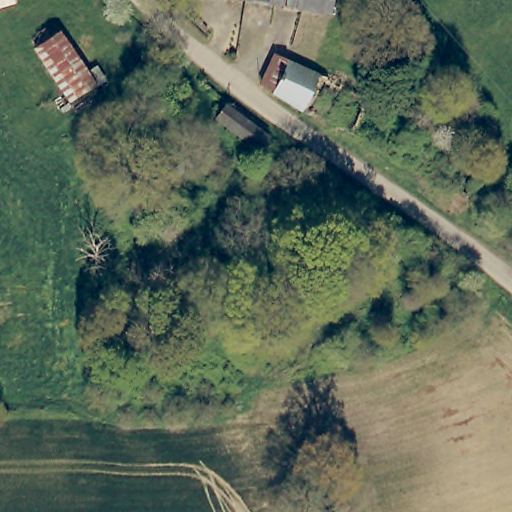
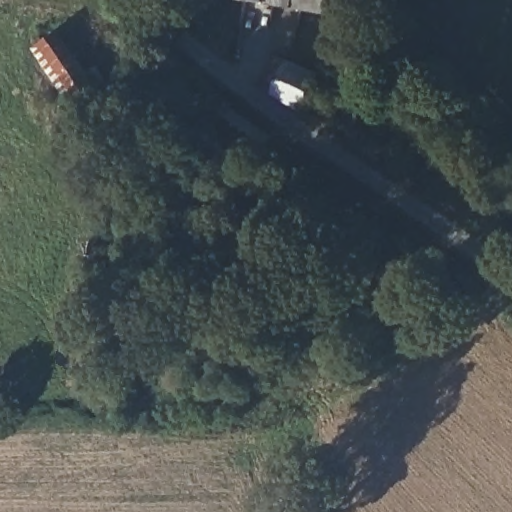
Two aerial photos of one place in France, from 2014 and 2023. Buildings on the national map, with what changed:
unchanged [(223,0),(248,0),(247,4),(223,0)]
unchanged [(247,4),(248,0),(280,0),(278,9),(247,4)]
unchanged [(278,9),(280,0),(312,0),(309,14),(278,9)]
unchanged [(309,14),(312,0),(341,0),(338,19),(309,14)]
unchanged [(65,31),(100,84),(74,101),(31,37),(50,25),(57,36),(65,31)]
unchanged [(307,107),(280,92),(282,88),(266,79),(280,54),(296,62),(323,75),(307,107)]
unchanged [(370,97),(353,132),(307,107),(323,75),(361,92),(370,97)]
unchanged [(259,149),(237,135),(215,120),(226,105),(247,120),(270,135),(259,149)]

